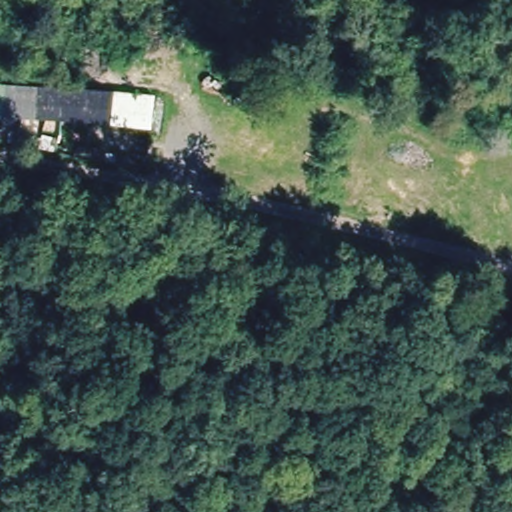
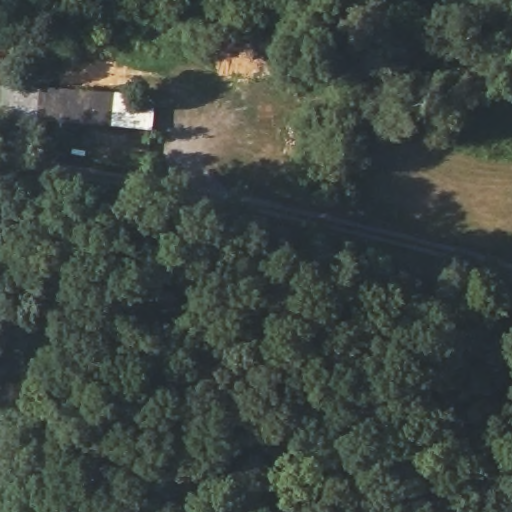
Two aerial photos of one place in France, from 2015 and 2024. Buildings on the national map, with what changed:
unchanged [(155,95),(152,129),(0,118),(0,84),(155,95)]

